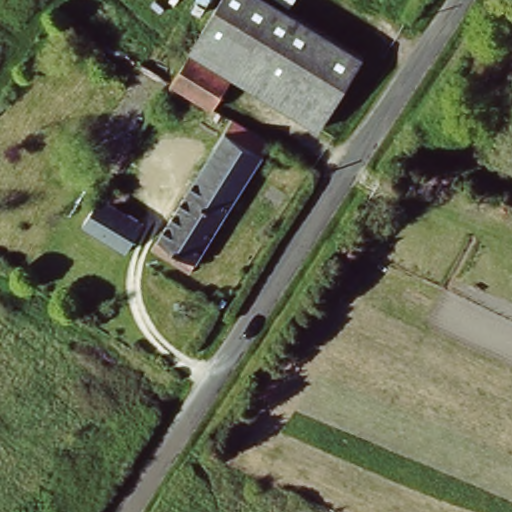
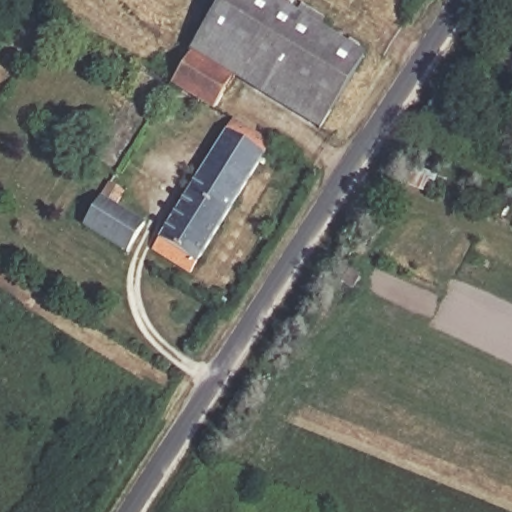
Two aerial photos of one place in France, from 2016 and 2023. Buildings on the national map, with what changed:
unchanged [(233,81),(192,56),(227,0),(263,0),(364,61),(320,134),(233,81)]
unchanged [(192,56),(233,81),(214,114),(172,88),(192,56)]
unchanged [(277,153),(203,273),(165,250),(238,130),(277,153)]
unchanged [(145,234),(127,262),(84,235),(110,193),(125,202),(115,216),(145,234)]

